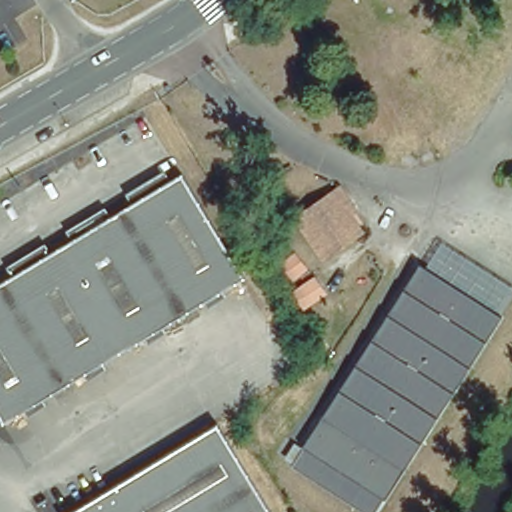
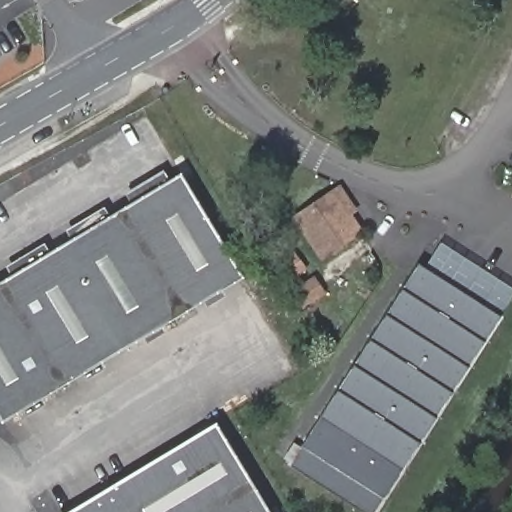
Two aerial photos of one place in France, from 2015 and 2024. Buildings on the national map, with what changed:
unchanged [(0,422),(0,283),(176,177),(237,279),(0,422)]
unchanged [(327,254),(300,215),(338,191),(345,187),(360,210),(354,214),(364,230),(327,254)]
unchanged [(512,292),(512,302),(500,320),(417,267),(433,242),(512,292)]
unchanged [(500,320),(383,503),(382,502),(376,512),(355,512),(289,470),(300,450),(298,449),(417,267),(500,320)]
unchanged [(269,512),(73,512),(216,425),(269,512)]

